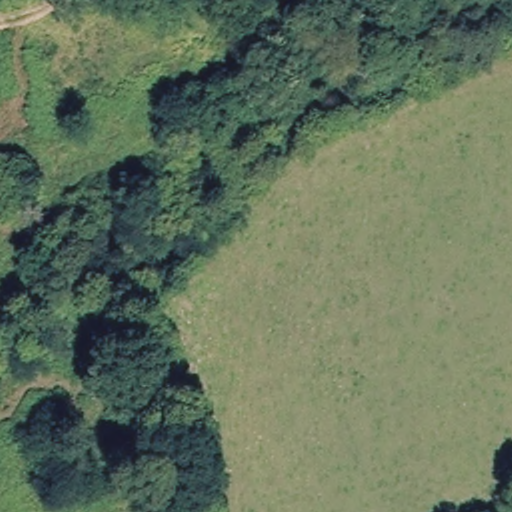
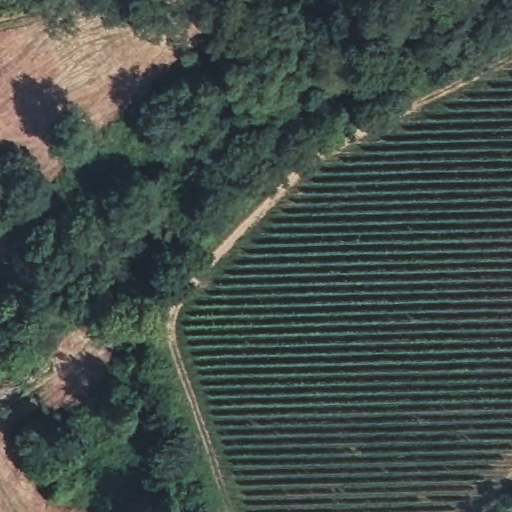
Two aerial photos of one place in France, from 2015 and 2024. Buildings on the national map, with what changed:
unchanged [(13,184),(25,201),(10,210),(0,197),(0,193),(13,184)]

